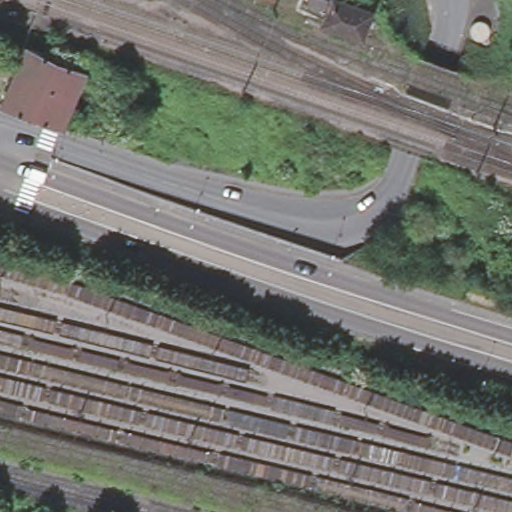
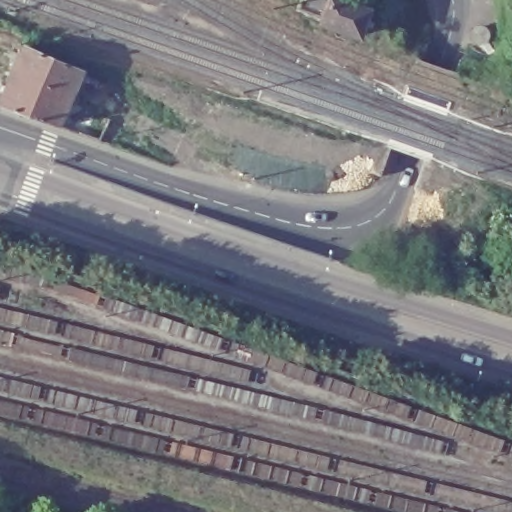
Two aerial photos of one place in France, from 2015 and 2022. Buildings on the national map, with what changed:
unchanged [(372,10),(362,40),(318,25),(322,14),(305,8),(309,0),(343,0),(372,10)]
unchanged [(80,64),(57,120),(0,98),(0,88),(22,37),(80,64)]
unchanged [(110,85),(116,88),(125,92),(114,116),(104,112),(100,110),(88,105),(100,80),(110,85)]
unchanged [(84,129),(105,137),(102,145),(80,137),(84,129)]

